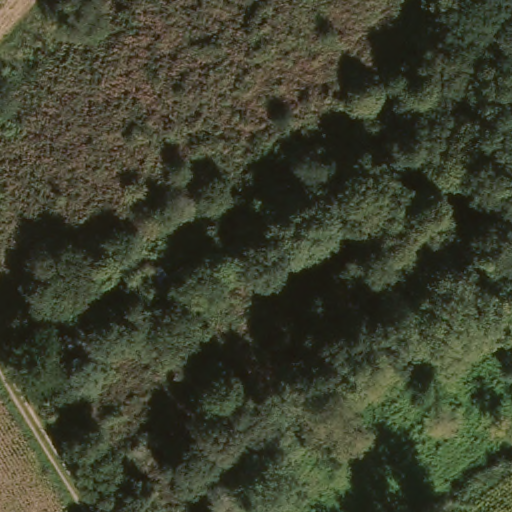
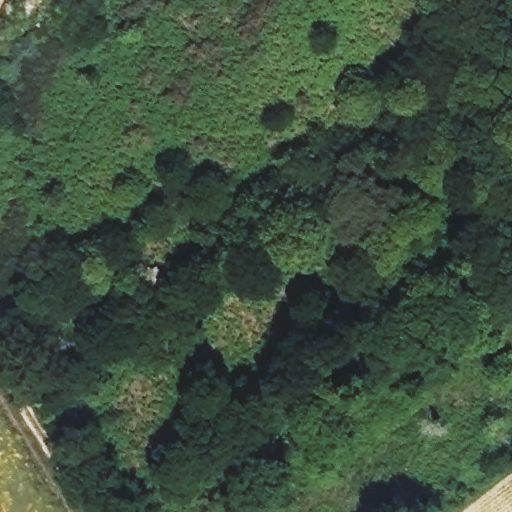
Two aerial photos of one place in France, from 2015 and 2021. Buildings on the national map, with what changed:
unchanged [(135,266),(149,258),(157,270),(178,256),(186,271),(164,285),(161,281),(148,289),(135,266)]

